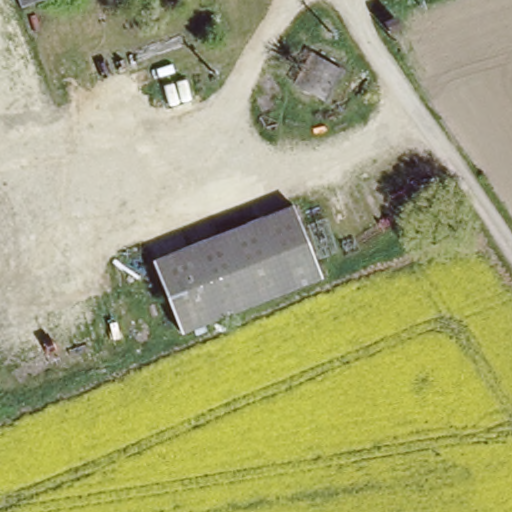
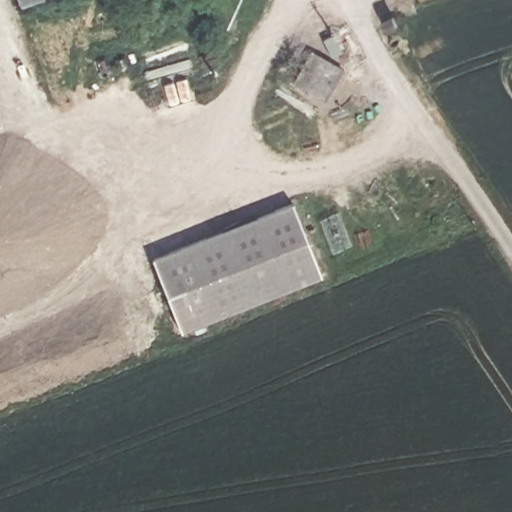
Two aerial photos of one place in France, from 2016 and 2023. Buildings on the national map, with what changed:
unchanged [(19,0),(48,0),(23,10),(19,0)]
unchanged [(341,67),(324,96),(291,78),(308,48),(341,67)]
unchanged [(324,273),(183,329),(155,260),(295,203),(324,273)]

